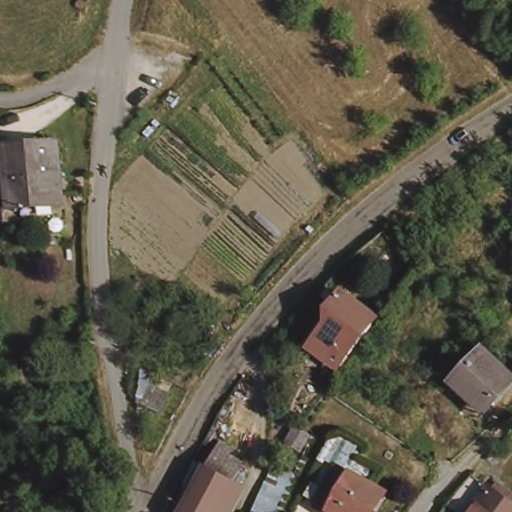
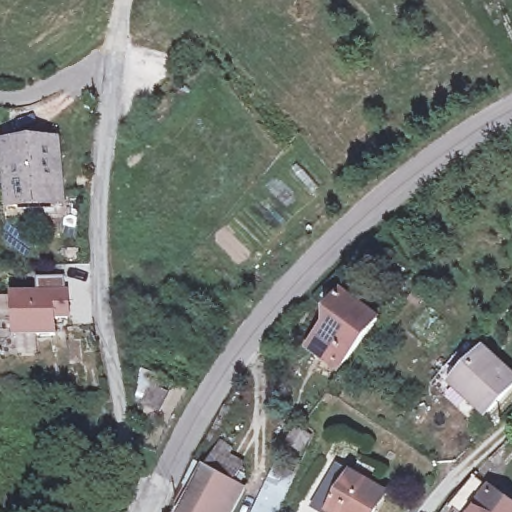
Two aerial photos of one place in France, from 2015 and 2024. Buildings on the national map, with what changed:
unchanged [(58,139),(63,202),(14,207),(7,142),(58,139)]
new [(57,322),(59,338),(16,341),(12,296),(40,294),(39,282),(65,281),(66,293),(71,293),(73,321),(57,322)]
unchanged [(308,344),(333,316),(321,303),(334,287),(370,316),(331,364),(308,344)]
unchanged [(485,351),(512,375),(512,379),(484,409),(456,383),(485,351)]
unchanged [(211,461),(223,443),(248,458),(238,478),(250,482),(236,512),(181,512),(204,456),(211,461)]
unchanged [(375,512),(353,512),(344,507),(341,512),(333,512),(323,507),(344,465),(387,486),(375,512)]
unchanged [(473,483),(512,512),(444,512),(443,511),(473,483)]

